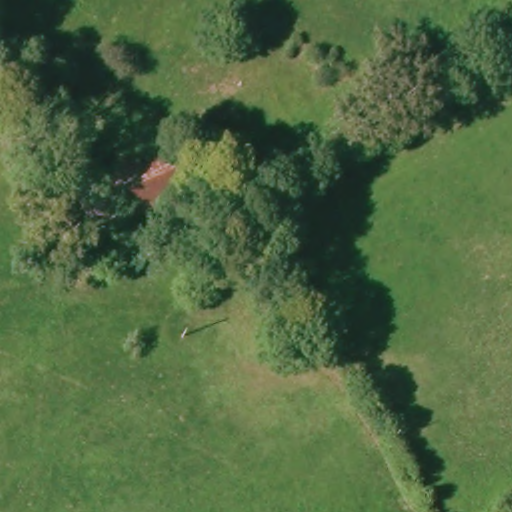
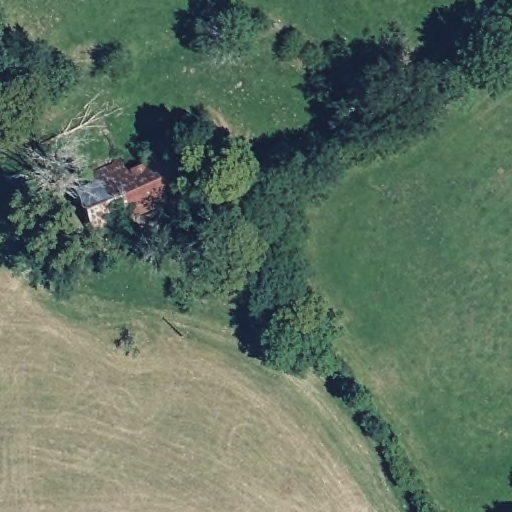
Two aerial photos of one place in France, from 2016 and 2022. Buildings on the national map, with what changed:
unchanged [(37,67),(38,91),(0,91),(0,68),(37,67)]
unchanged [(71,255),(54,214),(88,200),(84,189),(101,182),(105,193),(121,188),(117,174),(153,160),(158,174),(176,214),(71,255)]

